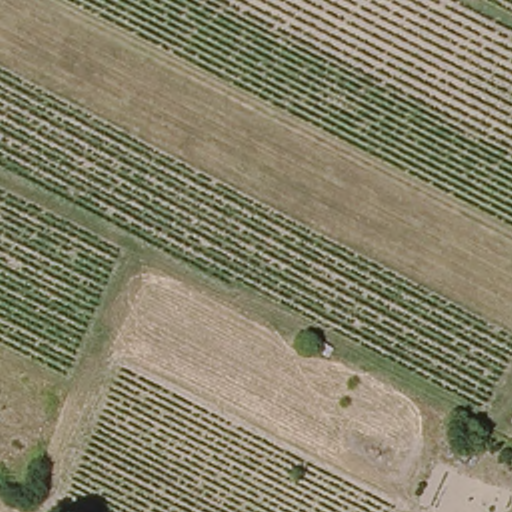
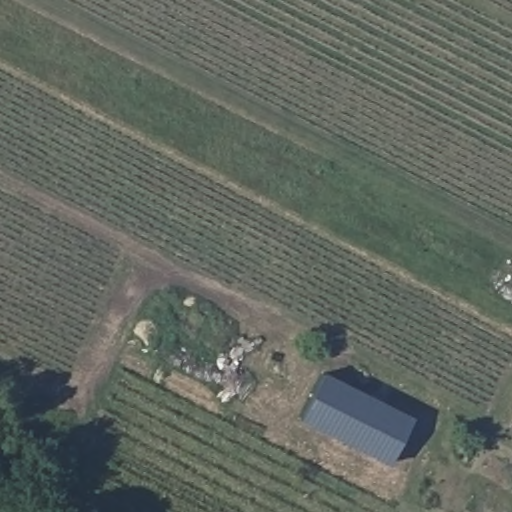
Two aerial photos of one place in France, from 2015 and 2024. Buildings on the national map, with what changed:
new [(411,417),(387,466),(297,421),(320,372),(411,417)]
unchanged [(512,426),(512,438),(507,436),(512,426)]

